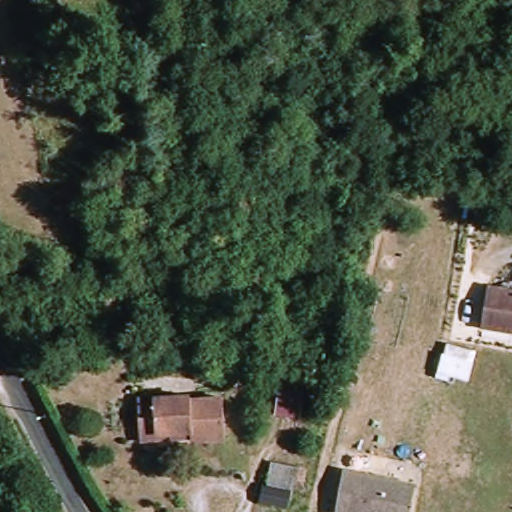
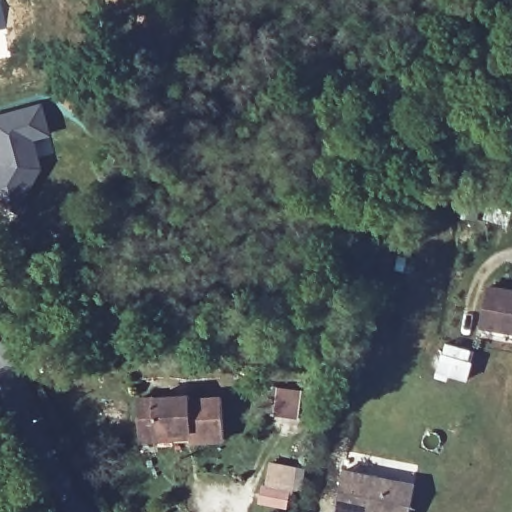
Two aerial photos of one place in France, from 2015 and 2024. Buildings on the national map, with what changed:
new [(0,117),(25,110),(41,105),(51,135),(35,140),(39,157),(41,167),(19,210),(0,199),(0,163),(0,162),(0,160),(0,117)]
unchanged [(487,327),(493,287),(512,290),(512,331),(487,327)]
unchanged [(474,353),(467,386),(435,380),(446,343),(474,353)]
unchanged [(188,399),(188,404),(222,402),(223,440),(188,442),(189,438),(142,441),(141,400),(188,399)]
unchanged [(345,469),(418,485),(412,512),(337,512),(345,469)]
demolished [(275,494),(279,480),(304,485),(300,500),(275,494)]
new [(263,501),(266,487),(290,492),(287,507),(263,501)]

